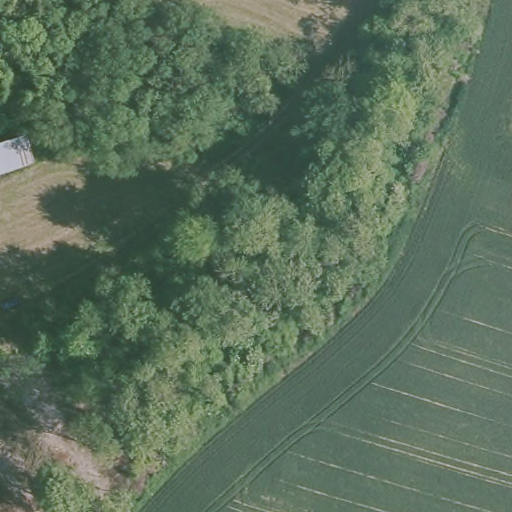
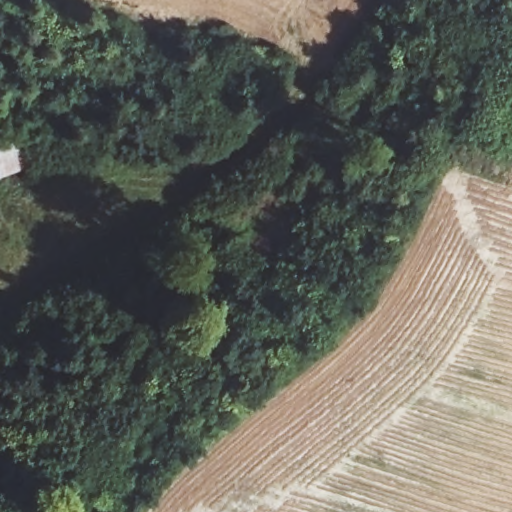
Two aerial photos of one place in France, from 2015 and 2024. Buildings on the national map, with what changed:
unchanged [(24,124),(35,165),(0,177),(0,131),(24,124)]

